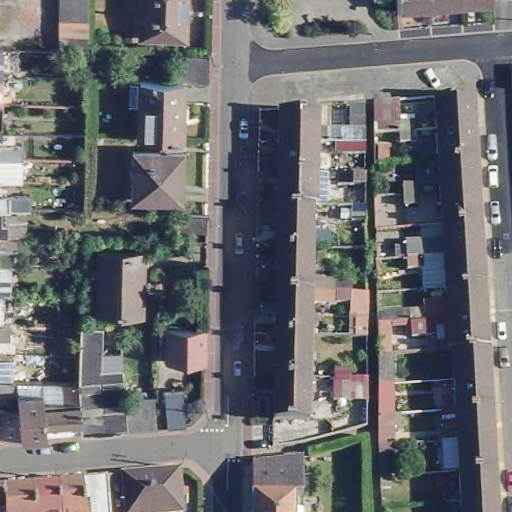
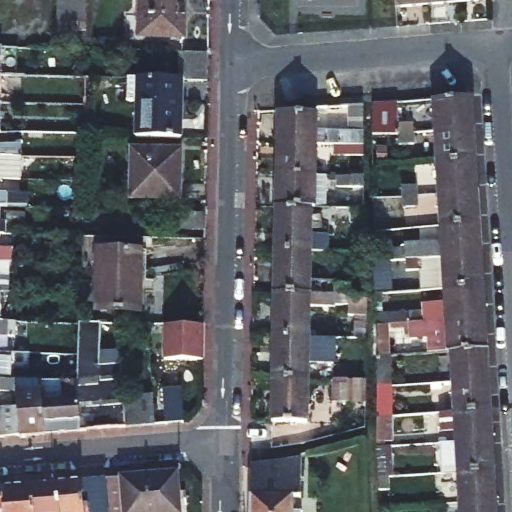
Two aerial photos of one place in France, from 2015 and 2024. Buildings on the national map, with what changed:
unchanged [(88,0),(88,13),(88,29),(87,43),(60,43),(60,28),(60,13),(60,0),(88,0)]
unchanged [(145,38),(146,0),(188,0),(188,39),(145,38)]
unchanged [(393,8),(392,0),(425,0),(425,5),(393,8)]
unchanged [(425,5),(425,0),(455,0),(455,2),(425,5)]
unchanged [(455,0),(483,0),(455,2),(455,0)]
unchanged [(175,56),(204,57),(204,84),(179,83),(177,140),(134,139),(135,107),(123,107),(124,82),(175,83),(175,56)]
unchanged [(2,67),(18,67),(18,75),(2,74),(0,74),(0,62),(2,62),(2,67)]
unchanged [(2,101),(0,101),(0,74),(2,74),(2,101)]
unchanged [(438,102),(476,99),(478,130),(440,133),(438,102)]
unchanged [(397,141),(397,130),(374,131),(374,115),(374,102),(395,100),(396,121),(413,120),(414,129),(415,140),(397,141)]
unchanged [(334,152),(334,144),(322,144),(312,144),(287,143),(275,143),(275,112),(313,112),(314,106),(319,106),(319,108),(325,107),(325,129),(345,129),(345,104),(358,103),(358,118),(358,121),(358,145),(349,145),(347,145),(347,152),(334,152)]
unchanged [(440,133),(478,130),(480,164),(442,166),(440,133)]
unchanged [(275,143),(287,143),(312,144),(310,175),(274,174),(275,143)]
unchanged [(8,152),(0,152),(0,144),(9,144),(8,152)]
unchanged [(182,149),(180,198),(134,197),(134,147),(182,149)]
unchanged [(442,166),(480,164),(482,196),(443,198),(442,166)]
unchanged [(14,180),(0,180),(0,170),(14,170),(14,180)]
unchanged [(310,175),(322,175),(321,209),(272,208),(274,174),(310,175)]
unchanged [(344,221),(310,220),(309,249),(272,248),(272,208),(321,209),(344,210),(345,185),(332,185),(332,175),(358,176),(358,203),(358,210),(358,245),(358,251),(358,263),(332,262),(332,250),(344,250),(344,221)]
unchanged [(404,205),(403,194),(402,183),(417,183),(418,194),(419,204),(404,205)]
unchanged [(9,191),(24,191),(24,208),(0,208),(0,195),(9,195),(9,191)]
unchanged [(443,198),(482,196),(484,227),(445,228),(443,198)]
unchanged [(206,212),(206,230),(176,230),(177,212),(206,212)]
unchanged [(3,215),(16,215),(15,235),(0,235),(0,230),(2,230),(3,215)]
unchanged [(412,271),(412,262),(394,263),(394,252),(409,252),(409,247),(445,246),(445,228),(484,227),(486,259),(447,261),(428,261),(429,270),(412,271)]
unchanged [(143,249),(142,312),(100,312),(102,248),(143,249)]
unchanged [(272,248),(309,249),(308,278),(326,277),(326,283),(340,283),(340,294),(270,293),(272,248)]
unchanged [(12,262),(0,262),(0,251),(12,251),(12,262)]
unchanged [(486,259),(488,291),(448,293),(447,261),(486,259)]
unchanged [(379,327),(379,315),(427,314),(426,305),(449,304),(448,293),(488,291),(490,320),(379,328),(379,327)]
unchanged [(269,337),(270,293),(340,294),(358,295),(358,316),(339,315),(339,308),(307,308),(307,337),(269,337)]
unchanged [(490,320),(491,350),(453,352),(435,353),(434,342),(379,344),(379,328),(490,320)]
unchanged [(9,337),(0,337),(0,323),(9,323),(9,337)]
unchanged [(153,397),(155,425),(140,427),(125,428),(78,432),(78,422),(42,424),(43,435),(17,437),(15,382),(42,381),(65,381),(79,381),(79,353),(80,323),(100,324),(100,352),(119,351),(122,397),(123,400),(137,399),(153,397)]
unchanged [(204,324),(203,358),(166,358),(167,324),(204,324)]
unchanged [(344,325),(358,325),(358,328),(358,338),(344,338),(344,325)]
unchanged [(307,337),(305,379),(268,378),(269,337),(307,337)]
unchanged [(374,434),(374,412),(374,404),(374,381),(374,351),(390,350),(390,380),(390,411),(391,434),(374,434)]
unchanged [(491,350),(493,381),(455,383),(453,352),(491,350)]
unchanged [(334,366),(348,366),(348,379),(363,380),(363,400),(362,427),(332,434),(334,379),(334,366)]
unchanged [(305,379),(305,421),(267,421),(268,378),(305,379)]
unchanged [(455,383),(493,381),(495,410),(457,412),(455,383)]
unchanged [(0,382),(15,382),(17,437),(0,438),(0,382)]
unchanged [(495,410),(496,441),(459,443),(457,431),(443,431),(442,413),(457,412),(495,410)]
unchanged [(442,474),(440,444),(459,443),(496,441),(498,471),(460,473),(442,474)]
unchanged [(377,485),(376,473),(375,443),(387,442),(389,472),(390,484),(377,485)]
unchanged [(268,466),(298,464),(298,505),(292,505),(292,512),(248,512),(250,468),(268,466)]
unchanged [(498,471),(500,502),(461,504),(460,473),(498,471)]
unchanged [(175,473),(178,512),(105,512),(102,478),(175,473)]
unchanged [(105,512),(56,512),(52,483),(102,478),(105,512)]
unchanged [(25,485),(52,483),(56,512),(28,512),(25,485)]
unchanged [(0,487),(25,485),(28,512),(0,512),(0,487)]
unchanged [(461,504),(500,502),(500,512),(461,512),(461,504)]

